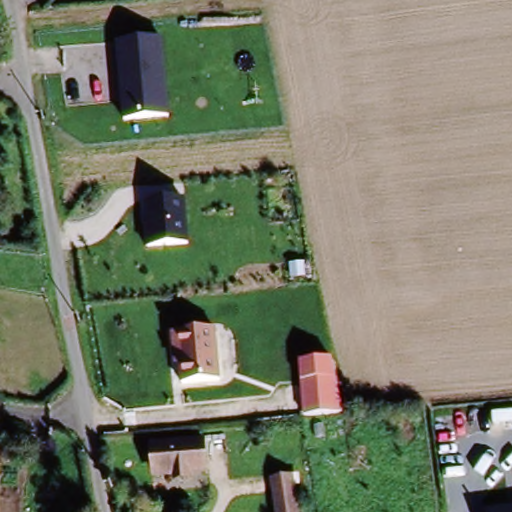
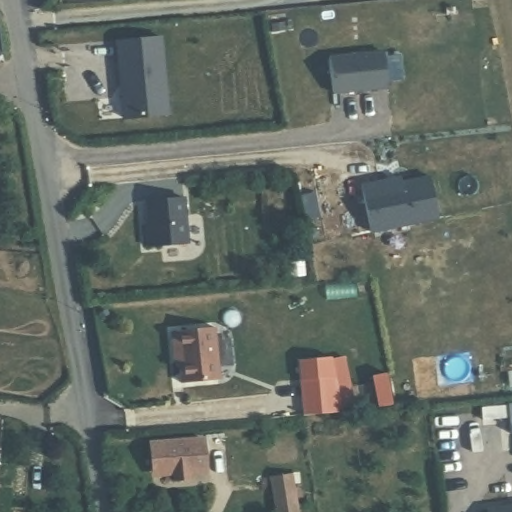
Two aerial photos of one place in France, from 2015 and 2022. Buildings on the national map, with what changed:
unchanged [(161,37),(168,116),(120,120),(114,41),(161,37)]
new [(333,95),(329,57),(384,51),(388,90),(333,95)]
new [(361,184),(401,176),(402,182),(429,176),(439,220),(371,234),(361,184)]
unchanged [(183,197),(188,244),(148,247),(144,249),(143,225),(146,225),(143,202),(183,197)]
unchanged [(178,365),(173,365),(169,333),(175,332),(215,328),(221,380),(181,384),(178,365)]
unchanged [(346,356),(355,408),(339,411),(306,417),(298,364),(332,358),(346,356)]
unchanged [(159,465),(156,437),(205,433),(208,461),(191,462),(191,470),(176,472),(176,463),(159,465)]
unchanged [(274,492),(274,482),(292,480),(294,490),(297,512),(278,512),(274,492)]
unchanged [(512,506),(512,512),(484,512),(484,510),(512,506)]

